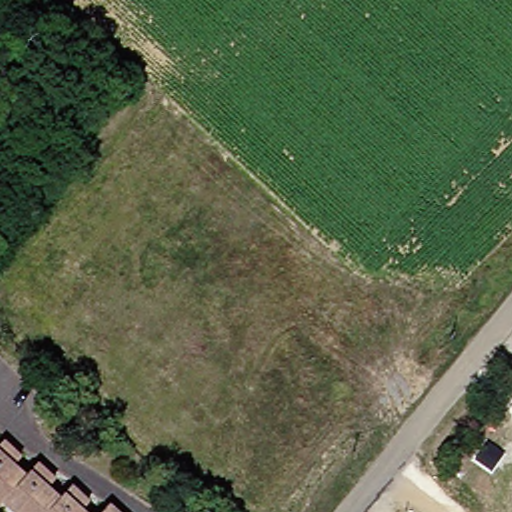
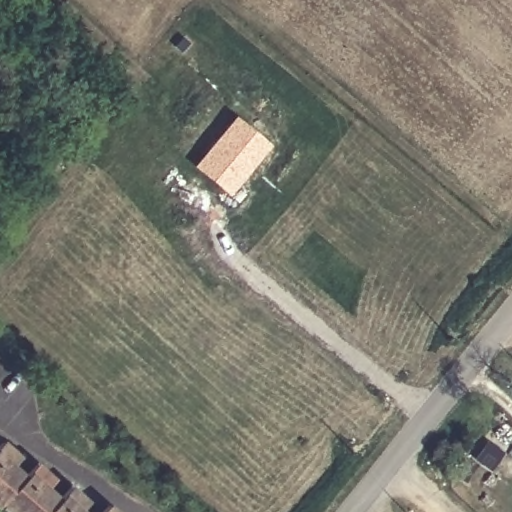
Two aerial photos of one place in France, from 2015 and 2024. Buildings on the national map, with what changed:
new [(239,118),(272,145),(230,195),(197,169),(239,118)]
unchanged [(25,451),(12,467),(19,472),(0,497),(0,448),(8,438),(25,451)]
unchanged [(41,461),(59,474),(45,492),(57,502),(72,484),(91,500),(81,512),(19,512),(7,502),(4,506),(0,502),(0,497),(19,472),(27,478),(41,461)]
unchanged [(112,505),(121,512),(106,512),(112,505)]

